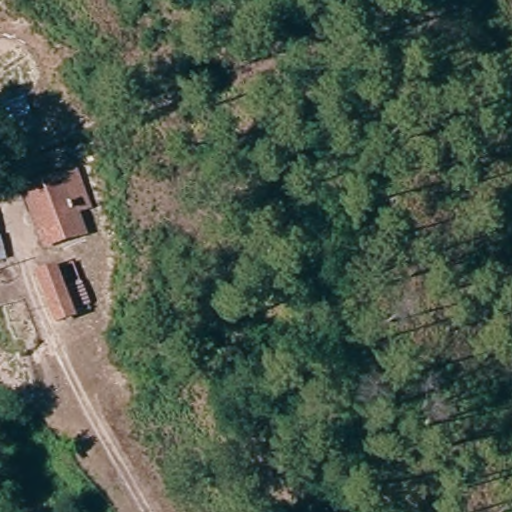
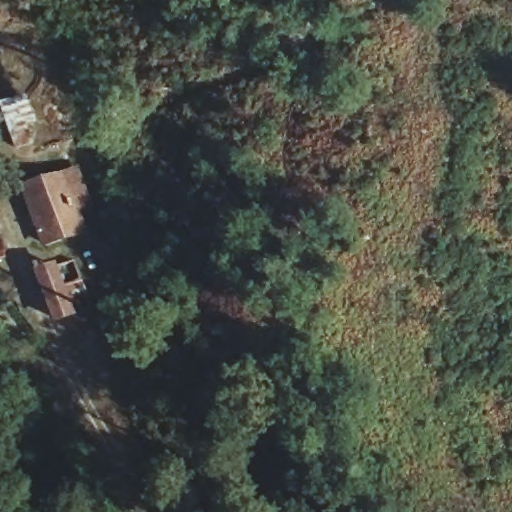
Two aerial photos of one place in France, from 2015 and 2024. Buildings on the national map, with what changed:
unchanged [(36,119),(12,126),(4,99),(28,93),(36,119)]
unchanged [(83,232),(43,246),(22,186),(73,169),(85,205),(75,209),(83,232)]
unchanged [(4,256),(0,257),(0,236),(4,256)]
unchanged [(81,310),(63,317),(44,268),(63,261),(81,310)]

